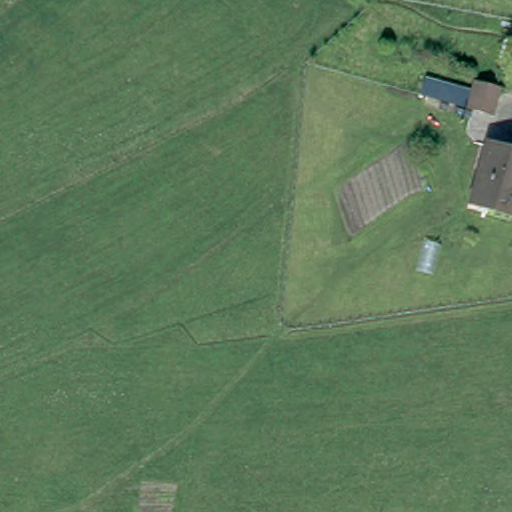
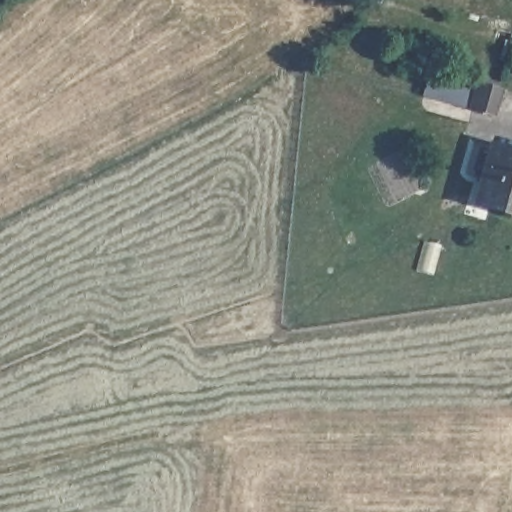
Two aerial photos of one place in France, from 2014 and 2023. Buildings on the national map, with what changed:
unchanged [(502,85),(497,110),(477,104),(482,80),(502,85)]
unchanged [(512,211),(466,200),(483,142),(512,149),(512,211)]

